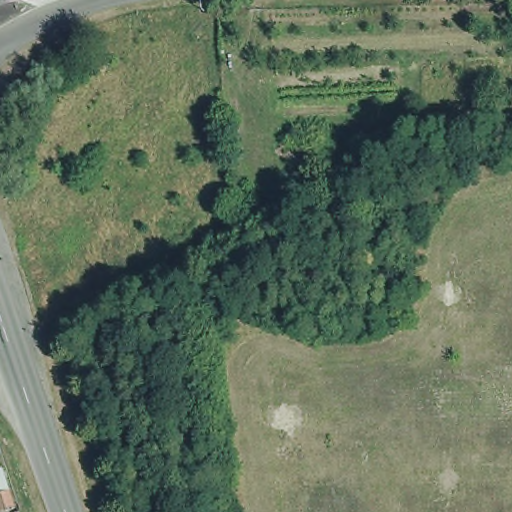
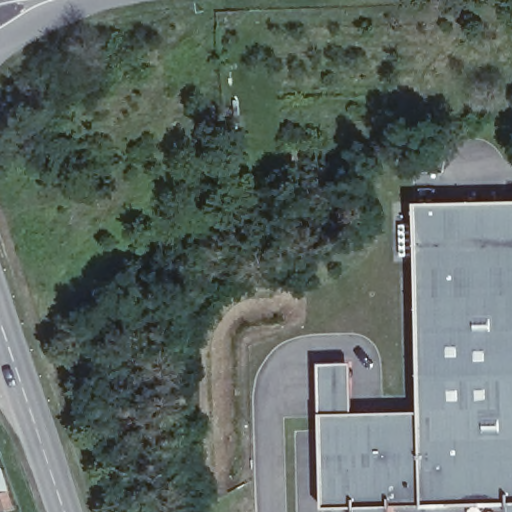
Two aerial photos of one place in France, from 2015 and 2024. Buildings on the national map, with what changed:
new [(423,504),(421,410),(416,201),(512,199),(512,502),(423,504)]
new [(352,361),(353,411),(421,410),(423,504),(324,507),(320,362),(352,361)]

